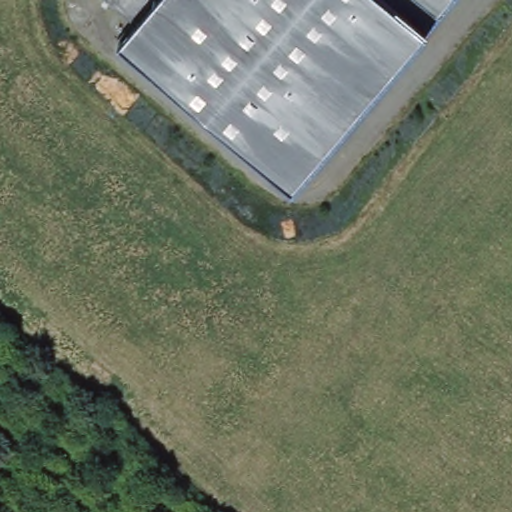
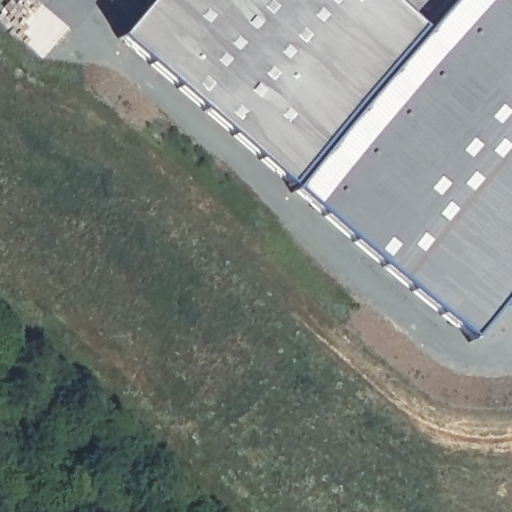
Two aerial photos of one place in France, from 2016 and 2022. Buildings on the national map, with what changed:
unchanged [(124,36),(137,20),(112,0),(450,0),(295,181),(124,36)]
new [(512,0),(512,294),(474,340),(295,181),(450,0),(512,0)]

